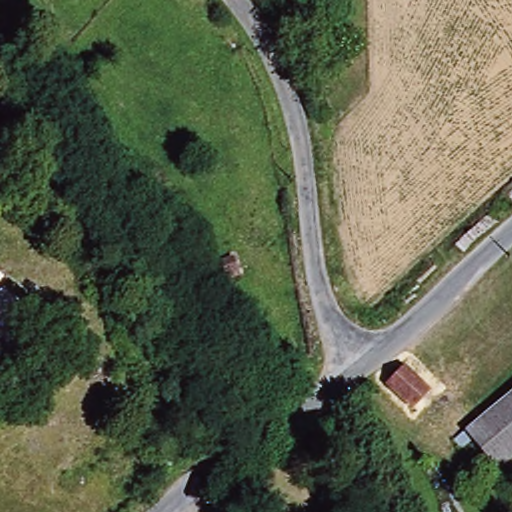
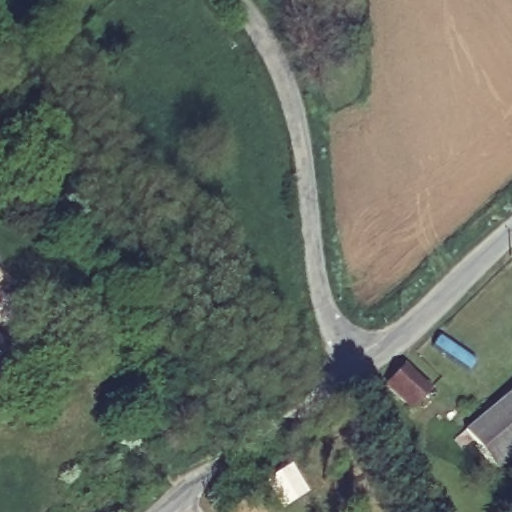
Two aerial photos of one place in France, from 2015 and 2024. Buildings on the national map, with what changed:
unchanged [(11,286),(0,298),(0,275),(11,286)]
unchanged [(21,374),(0,398),(0,354),(21,374)]
unchanged [(377,385),(395,364),(423,385),(407,404),(377,385)]
unchanged [(103,407),(100,403),(100,396),(103,392),(110,387),(116,386),(124,391),(126,396),(126,402),(124,406),(117,412),(110,412),(103,407)]
unchanged [(498,415),(512,403),(512,465),(506,470),(475,433),(498,415)]

